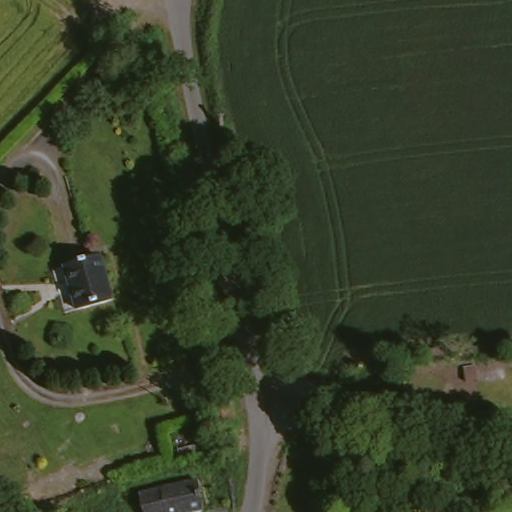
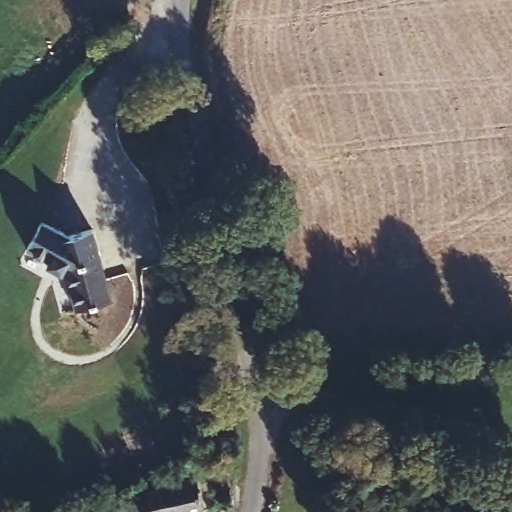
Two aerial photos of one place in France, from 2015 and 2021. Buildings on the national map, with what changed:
unchanged [(98,260),(105,305),(69,310),(62,264),(98,260)]
unchanged [(198,511),(193,512),(140,512),(136,493),(193,480),(198,511)]

